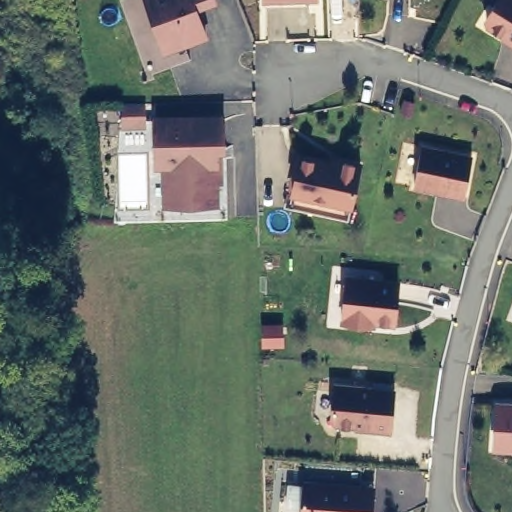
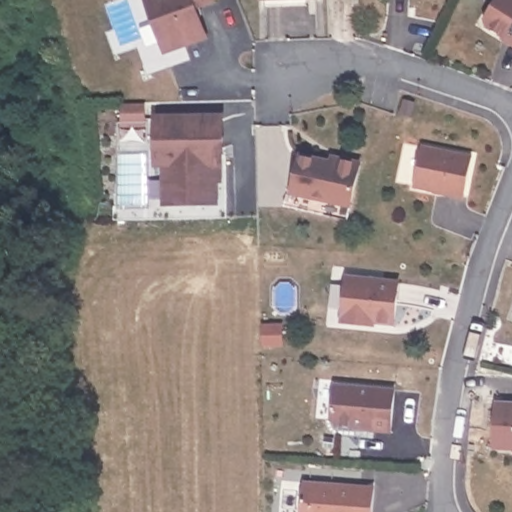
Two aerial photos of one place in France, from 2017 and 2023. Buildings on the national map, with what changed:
unchanged [(213,0),(195,6),(196,7),(191,16),(200,20),(206,36),(184,44),(164,51),(162,44),(146,0),(213,0)]
unchanged [(499,36),(484,26),(483,18),(494,0),(512,0),(512,46),(499,39),(499,36)]
unchanged [(157,164),(156,149),(156,118),(222,116),(223,148),(215,148),(216,161),(219,161),(219,180),(216,180),(216,203),(166,204),(166,164),(157,164)]
unchanged [(472,156),(464,197),(414,187),(423,146),(472,156)]
unchanged [(299,151),(329,159),(329,154),(361,161),(353,208),(289,194),(299,151)]
unchanged [(347,278),(399,283),(394,323),(366,320),(365,324),(342,322),(347,278)]
unchanged [(334,385),(395,390),(391,432),(372,430),(372,428),(336,425),(331,419),(334,385)]
unchanged [(497,404),(512,404),(512,448),(494,447),(497,404)]
unchanged [(374,488),(372,512),(302,512),(304,483),(374,488)]

